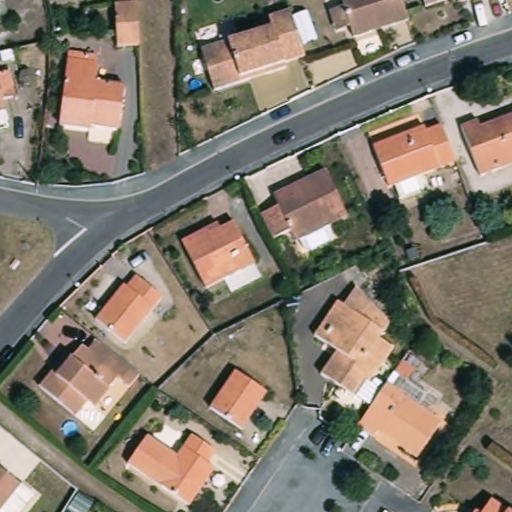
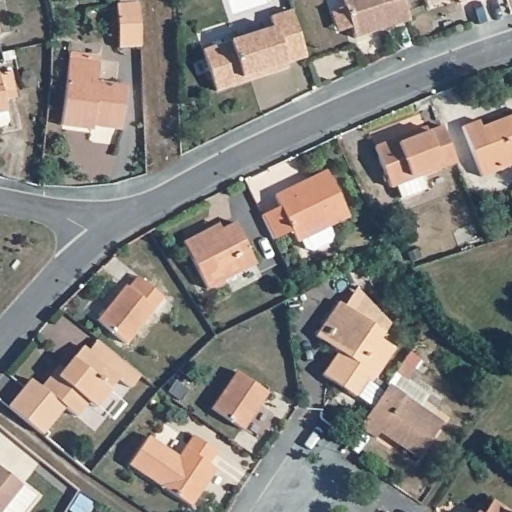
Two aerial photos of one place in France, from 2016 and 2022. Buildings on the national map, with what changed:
unchanged [(118,2),(133,0),(139,0),(141,39),(142,42),(123,44),(118,2)]
unchanged [(339,5),(337,0),(397,0),(404,19),(388,24),(387,19),(366,26),(368,30),(349,36),(346,26),(332,30),(326,9),(339,5)]
unchanged [(424,0),(441,0),(426,5),(424,0)]
unchanged [(457,0),(459,0),(458,1),(457,0)]
unchanged [(311,55),(291,62),(293,67),(222,89),(209,50),(280,27),(276,16),(296,9),(311,55)]
unchanged [(96,57),(94,65),(98,65),(96,86),(123,89),(119,130),(91,126),(91,130),(60,127),(68,55),(96,57)]
unchanged [(0,128),(0,75),(12,72),(19,99),(6,101),(9,112),(11,122),(8,127),(0,128)]
unchanged [(497,171),(479,178),(460,128),(476,122),(478,127),(512,115),(512,165),(497,171)]
unchanged [(419,177),(424,191),(400,200),(394,187),(389,190),(373,148),(422,129),(424,132),(441,127),(455,164),(419,177)]
unchanged [(329,244),(309,253),(302,251),(299,242),(297,244),(292,232),(272,242),(260,217),(279,209),(273,197),(287,189),(306,182),(325,172),(347,218),(327,229),(332,237),(329,244)]
unchanged [(226,226),(228,231),(242,223),(256,252),(244,258),(251,272),(215,290),(191,244),(209,234),(226,226)]
unchanged [(126,288),(136,277),(141,283),(163,298),(126,345),(96,321),(124,287),(126,288)]
unchanged [(315,337),(337,305),(344,308),(356,290),(378,313),(389,325),(378,340),(393,350),(374,378),(387,387),(371,410),(321,376),(332,360),(337,352),(315,337)]
unchanged [(135,372),(140,377),(130,389),(118,380),(94,410),(86,403),(75,417),(41,389),(54,374),(61,366),(64,370),(81,348),(87,353),(96,342),(99,343),(107,350),(127,366),(135,372)]
unchanged [(414,372),(405,385),(426,398),(419,409),(441,424),(418,458),(379,432),(375,438),(359,427),(371,410),(387,387),(403,363),(414,372)]
unchanged [(236,372),(266,394),(242,430),(212,410),(236,372)]
unchanged [(130,461),(149,432),(179,452),(193,432),(215,447),(207,459),(215,465),(190,502),(130,461)]
unchanged [(0,512),(0,469),(21,487),(0,512)]
unchanged [(79,496),(91,505),(86,512),(69,512),(79,496)]
unchanged [(503,512),(488,512),(493,505),(503,512)]

